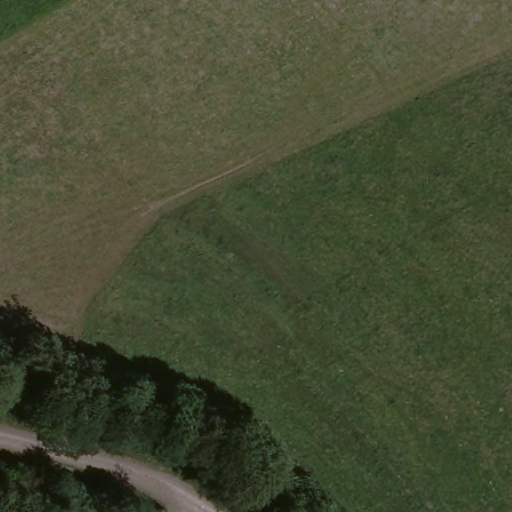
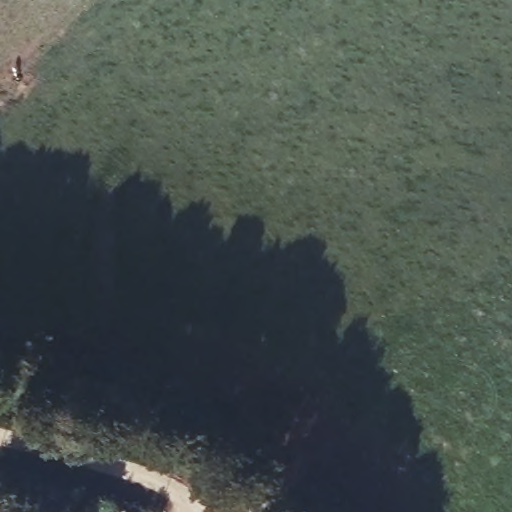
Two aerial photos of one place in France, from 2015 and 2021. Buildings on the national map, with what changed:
unchanged [(135,501),(141,512),(111,512),(135,501)]

